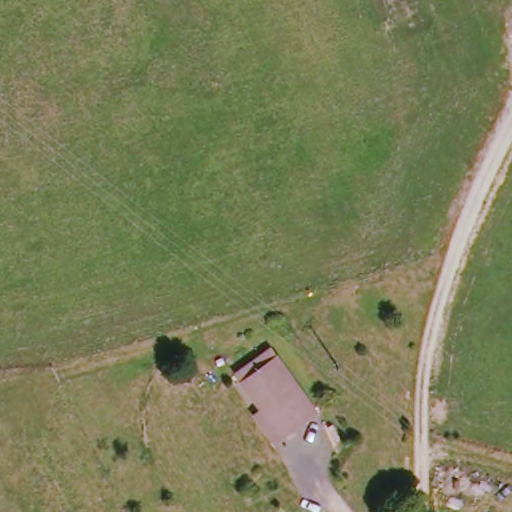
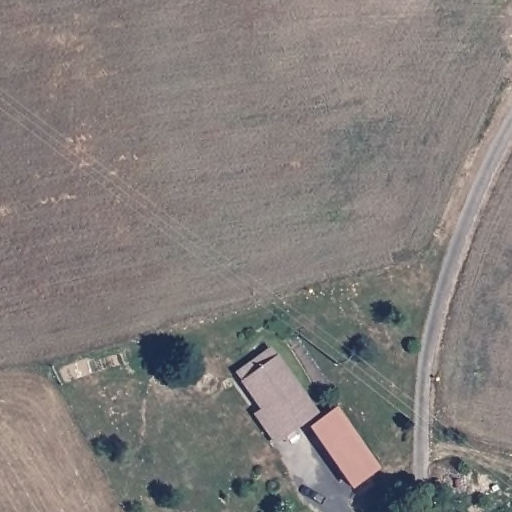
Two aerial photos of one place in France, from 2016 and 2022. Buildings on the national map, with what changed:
unchanged [(250,418),(259,411),(239,382),(232,375),(252,360),(247,351),(262,341),(268,347),(277,355),(318,413),(271,445),(250,418)]
new [(382,466),(352,488),(309,427),(338,405),(382,466)]

